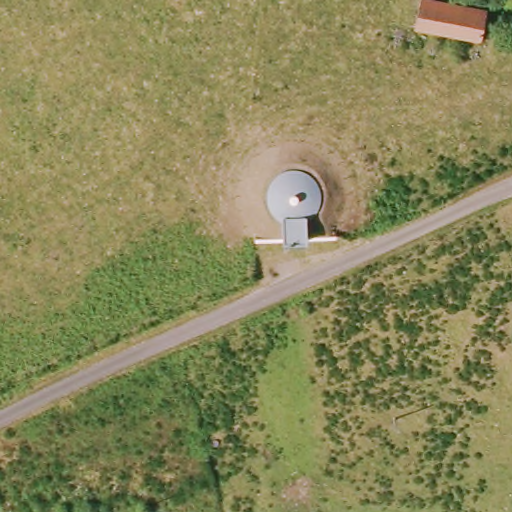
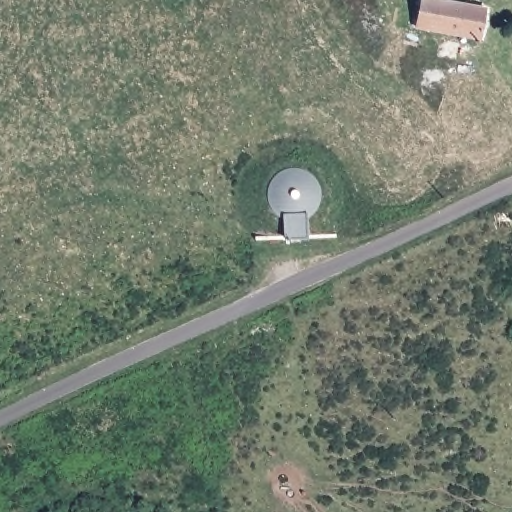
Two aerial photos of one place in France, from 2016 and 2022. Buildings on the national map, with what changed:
unchanged [(426,0),(480,10),(475,40),(413,29),(418,0),(426,0)]

